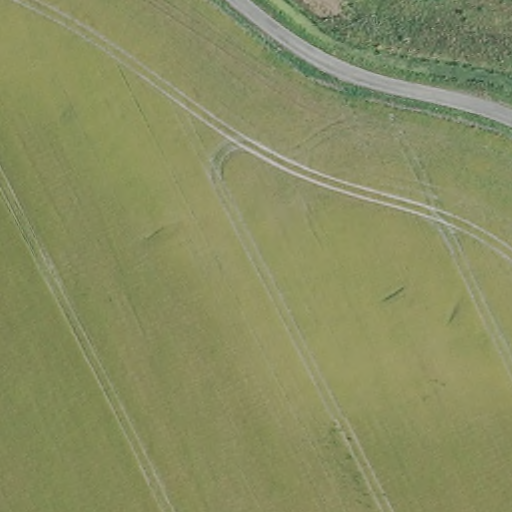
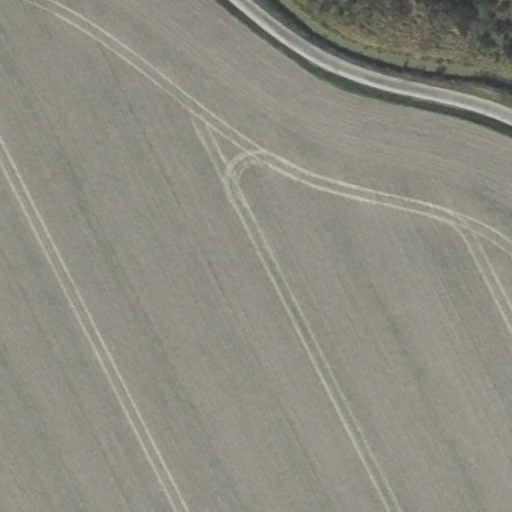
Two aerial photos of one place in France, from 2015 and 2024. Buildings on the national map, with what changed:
[]

